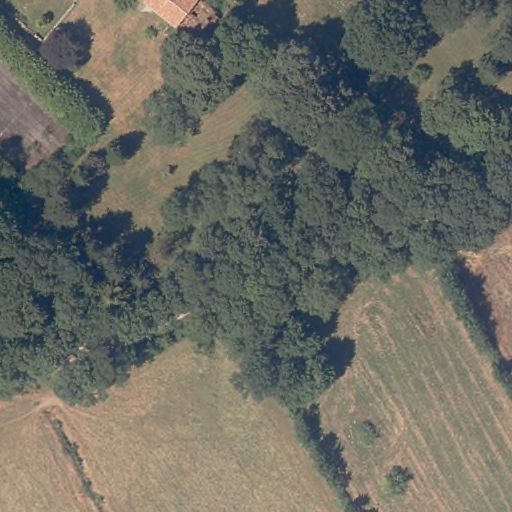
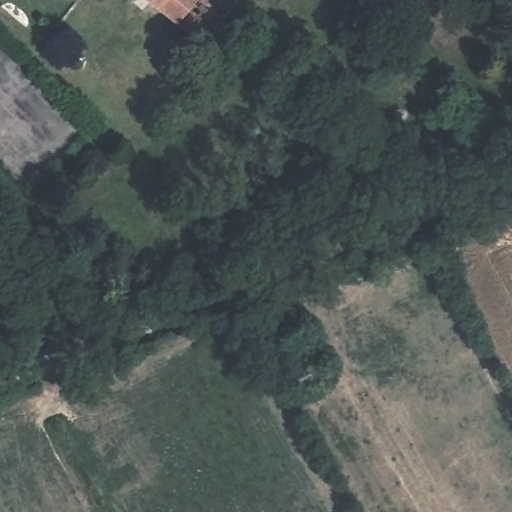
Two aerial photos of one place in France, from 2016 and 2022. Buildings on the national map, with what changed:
unchanged [(189,53),(165,34),(175,21),(150,0),(238,0),(239,1),(204,47),(197,43),(189,53)]

